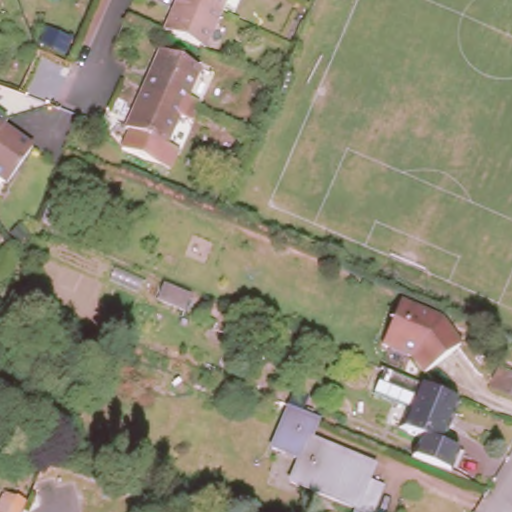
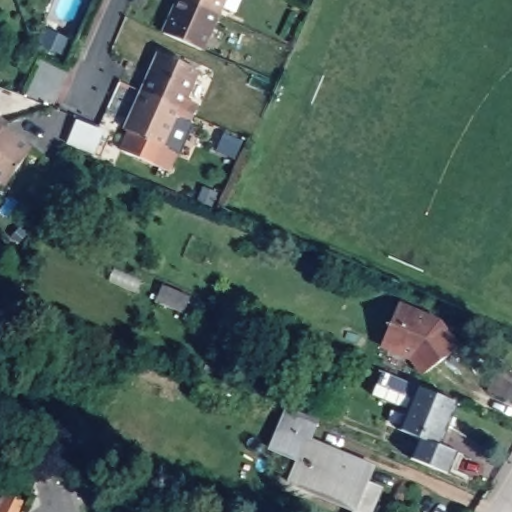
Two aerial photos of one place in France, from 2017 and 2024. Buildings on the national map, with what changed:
unchanged [(193,0),(221,13),(206,49),(165,31),(179,0),(193,0)]
unchanged [(193,0),(227,0),(221,13),(193,0)]
unchanged [(126,132),(143,94),(160,55),(200,73),(188,100),(203,106),(198,118),(183,111),(166,150),(126,132)]
unchanged [(3,128),(9,133),(11,134),(33,149),(31,150),(6,184),(0,179),(0,117),(7,122),(3,128)]
unchanged [(181,156),(173,174),(117,151),(126,132),(166,150),(181,156)]
unchanged [(163,284),(190,296),(184,312),(156,300),(163,284)]
unchanged [(393,305),(438,322),(457,343),(418,377),(409,363),(376,351),(393,305)]
unchanged [(489,385),(498,364),(512,370),(512,394),(489,385)]
unchanged [(410,413),(368,398),(383,373),(418,392),(410,413)]
unchanged [(449,420),(454,423),(450,433),(445,432),(437,451),(456,459),(448,478),(412,463),(420,444),(401,435),(410,413),(419,392),(456,407),(449,420)]
unchanged [(313,440),(377,468),(371,481),(387,488),(376,512),(357,512),(359,509),(294,482),(303,460),(275,448),(293,406),(322,418),(313,440)]
unchanged [(21,504),(17,512),(0,512),(0,496),(0,495),(21,504)]

